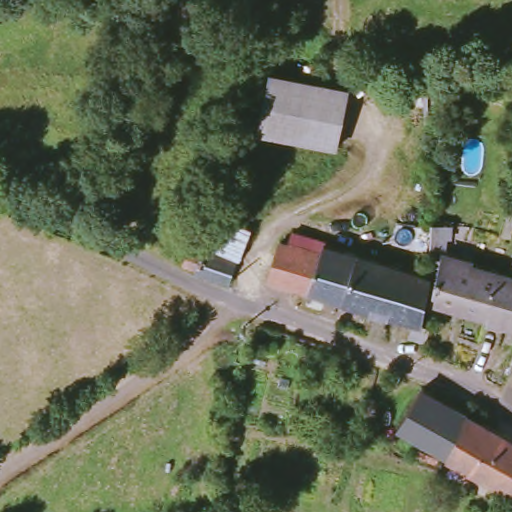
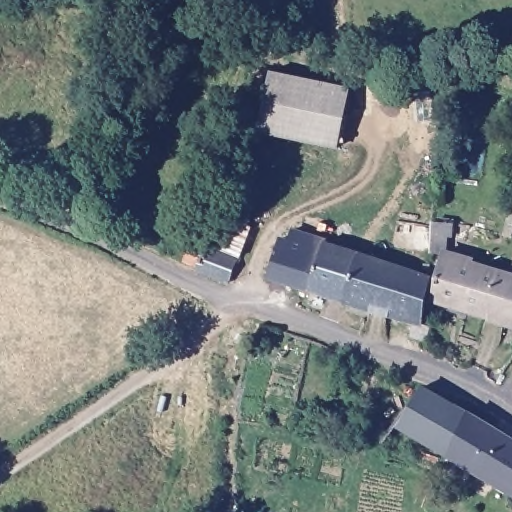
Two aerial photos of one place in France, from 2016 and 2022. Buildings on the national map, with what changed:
unchanged [(336,151),(257,135),(270,76),(348,93),(336,151)]
unchanged [(214,244),(226,214),(251,224),(239,254),(214,245),(214,244)]
unchanged [(424,328),(269,279),(281,241),(290,244),(293,232),(326,243),(326,247),(431,278),(425,317),(424,328)]
unchanged [(197,267),(197,265),(195,262),(195,260),(194,255),(196,252),(199,250),(203,249),(204,246),(213,249),(238,257),(236,263),(230,279),(197,267)]
unchanged [(433,304),(438,280),(442,256),(512,277),(512,326),(433,304)]
unchanged [(443,456),(400,428),(424,391),(467,416),(443,456)]
unchanged [(467,416),(512,443),(512,501),(443,456),(467,416)]

